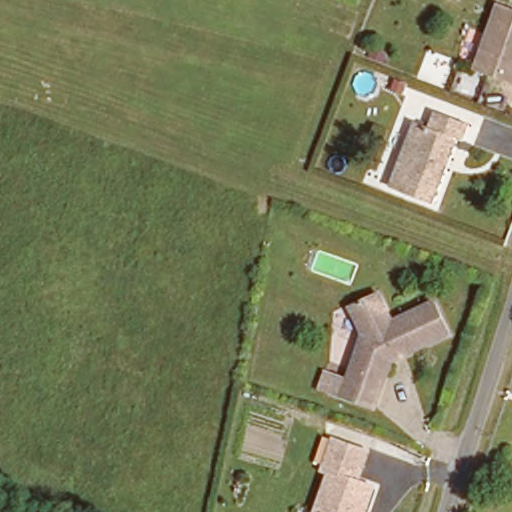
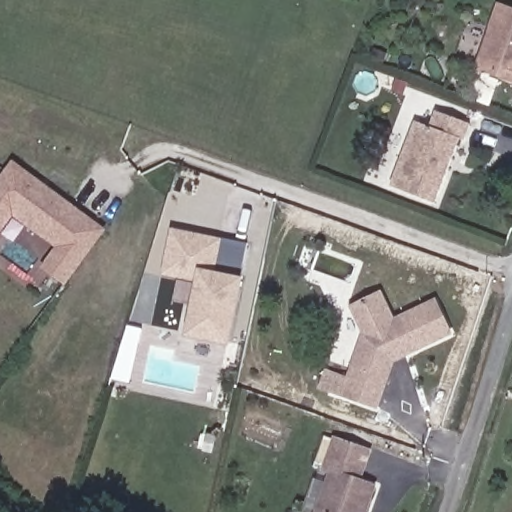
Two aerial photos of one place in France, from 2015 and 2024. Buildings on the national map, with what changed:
unchanged [(512,82),(481,70),(502,13),(512,17),(512,82)]
unchanged [(455,126),(426,206),(395,195),(425,115),(455,126)]
new [(65,283),(45,266),(60,247),(16,214),(0,233),(0,183),(15,163),(105,229),(65,283)]
new [(239,278),(245,280),(229,345),(182,336),(191,283),(160,276),(170,229),(246,246),(239,278)]
unchanged [(348,309),(377,293),(381,298),(357,312),(376,339),(359,379),(346,372),(358,337),(348,309)]
unchanged [(401,360),(382,407),(352,394),(330,384),(337,367),(346,372),(359,379),(376,339),(357,312),(381,298),(398,325),(429,307),(445,335),(401,360)]
new [(333,436),(373,450),(361,484),(335,474),(321,512),(314,512),(328,472),(322,471),(333,436)]
unchanged [(368,512),(321,512),(335,474),(375,489),(368,512)]

